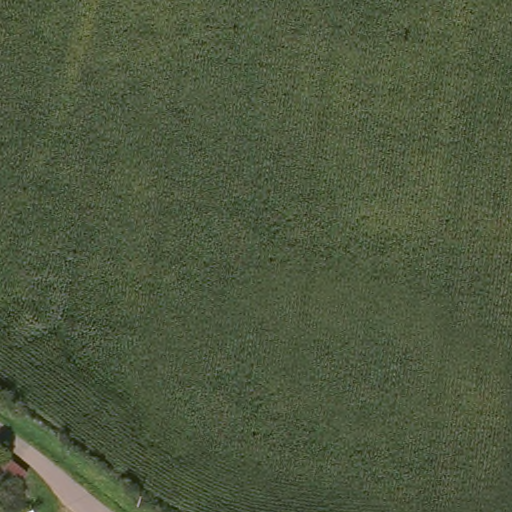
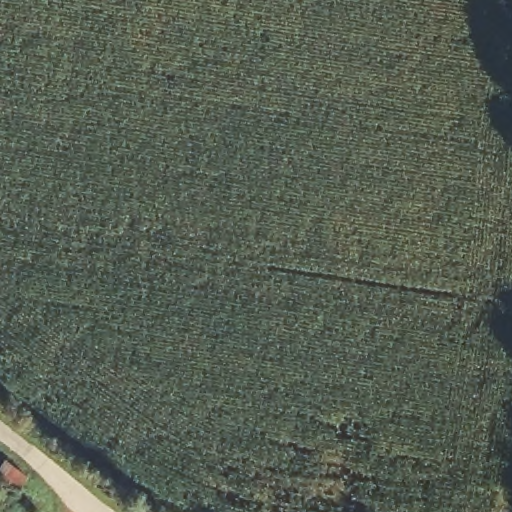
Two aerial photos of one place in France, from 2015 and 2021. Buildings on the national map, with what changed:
unchanged [(17,487),(0,473),(0,460),(3,456),(26,475),(17,487)]

